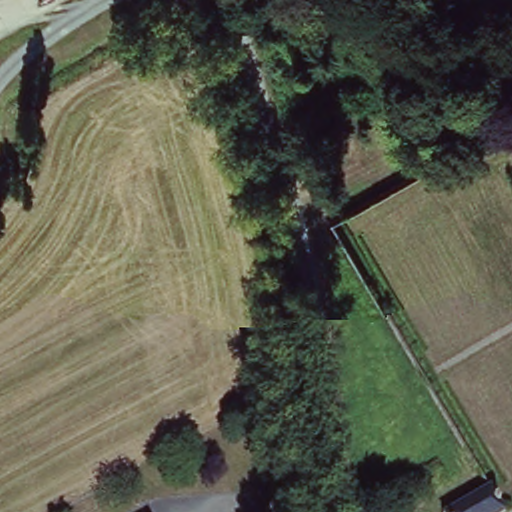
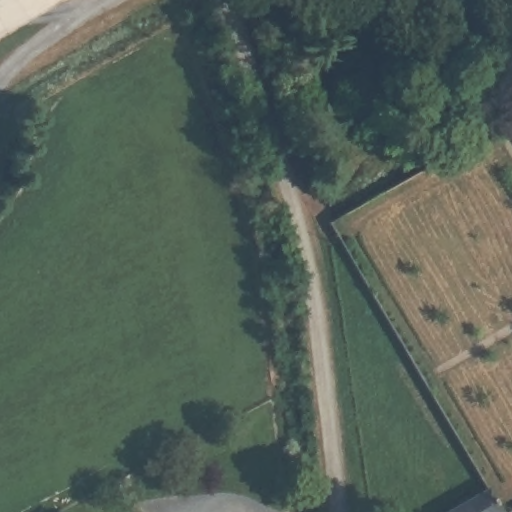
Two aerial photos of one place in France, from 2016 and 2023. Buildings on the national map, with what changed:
unchanged [(409,452),(415,463),(410,467),(414,474),(377,496),(366,479),(409,452)]
unchanged [(491,491),(505,512),(458,512),(491,491)]

